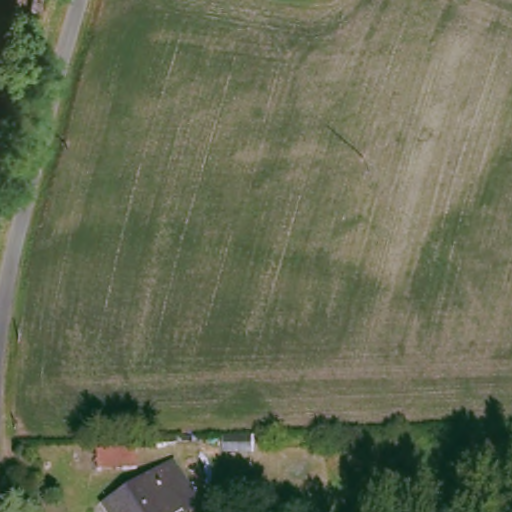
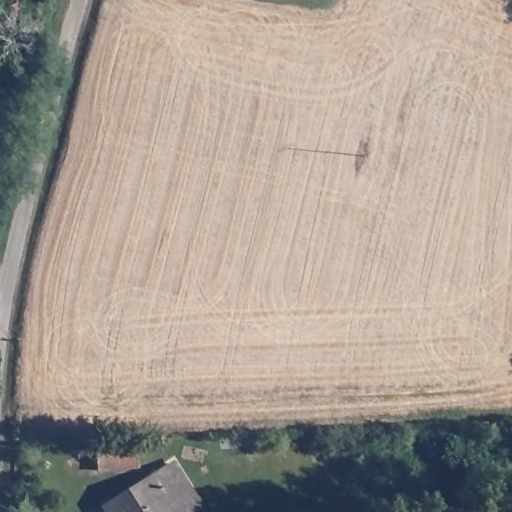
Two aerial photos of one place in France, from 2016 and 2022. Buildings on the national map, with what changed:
unchanged [(98,445),(141,443),(141,468),(101,473),(98,445)]
unchanged [(181,460),(206,503),(191,511),(189,509),(184,512),(114,512),(110,504),(181,460)]

